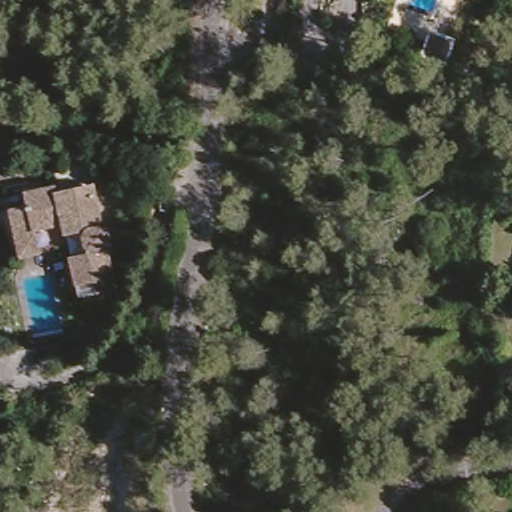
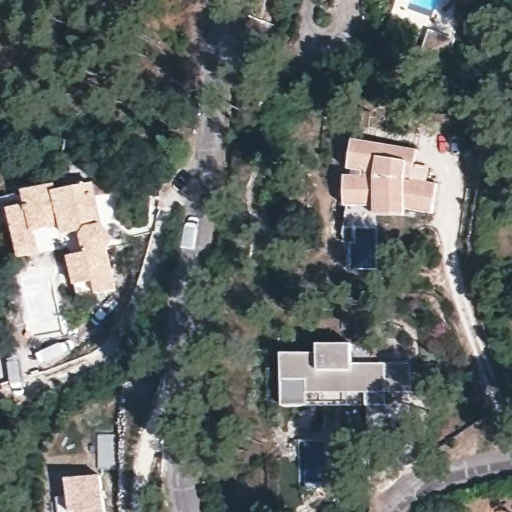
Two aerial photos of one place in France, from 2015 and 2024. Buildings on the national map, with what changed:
new [(418,150),(415,180),(436,184),(432,213),(405,209),(405,219),(377,218),(377,206),(347,205),(346,178),(363,178),(363,173),(348,170),(354,141),(418,150)]
unchanged [(67,257),(84,254),(80,232),(62,235),(60,225),(33,230),(37,254),(19,258),(8,209),(27,204),(25,194),(52,188),(54,192),(92,184),(106,173),(111,172),(115,193),(125,243),(104,248),(113,288),(94,293),(76,297),(73,284),(67,257)]
new [(413,394),(388,394),(388,407),(365,407),(364,396),(310,396),(310,407),(284,407),(283,354),(319,353),(319,346),(353,344),(354,364),(412,364),(413,394)]
new [(61,481),(62,481),(62,476),(76,474),(76,479),(95,476),(99,512),(54,512),(53,499),(63,498),(61,481)]

